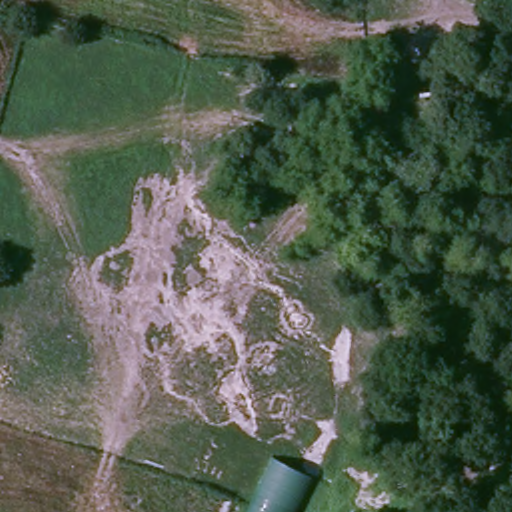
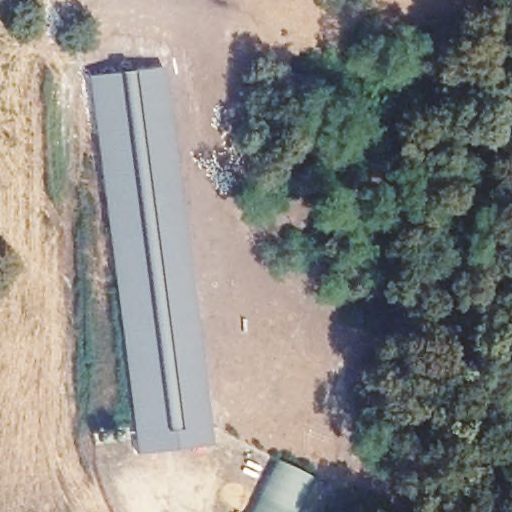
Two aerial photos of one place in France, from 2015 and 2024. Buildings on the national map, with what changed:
new [(89,76),(164,66),(210,444),(137,452),(89,76)]
unchanged [(315,478),(297,512),(245,512),(272,457),(315,478)]

